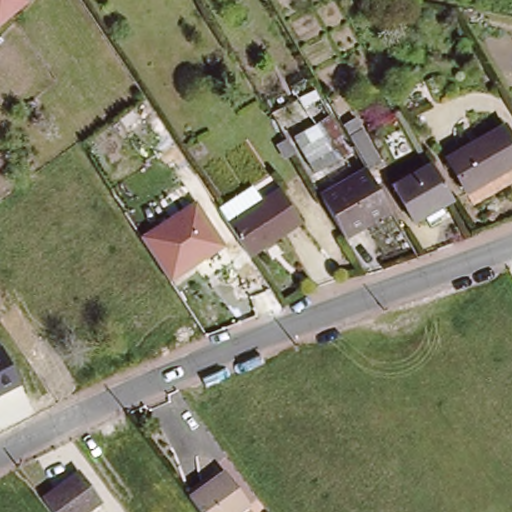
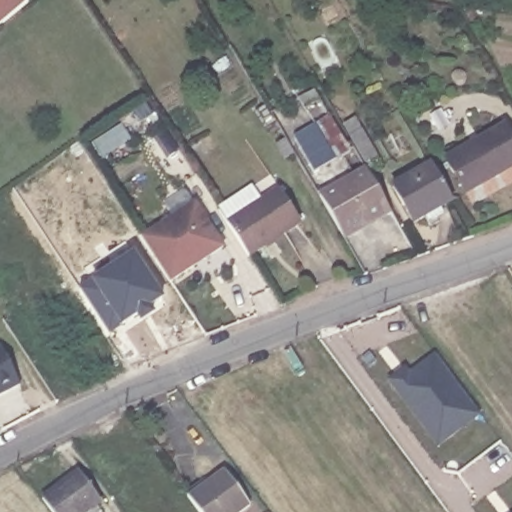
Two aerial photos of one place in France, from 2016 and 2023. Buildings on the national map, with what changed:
unchanged [(0,25),(0,0),(26,0),(28,2),(0,25)]
demolished [(6,109),(0,103),(0,43),(37,85),(6,109)]
unchanged [(354,162),(317,183),(292,138),(329,117),(354,162)]
unchanged [(467,192),(447,158),(505,124),(512,137),(512,166),(467,192)]
unchanged [(453,205),(413,227),(393,190),(432,169),(453,205)]
unchanged [(390,213),(343,241),(318,199),(365,171),(369,177),(390,213)]
unchanged [(302,225),(250,262),(230,231),(220,218),(255,194),(264,207),(281,194),(302,225)]
unchanged [(140,236),(197,200),(225,247),(170,283),(140,236)]
new [(109,334),(80,290),(135,254),(164,299),(150,308),(109,334)]
unchanged [(20,387),(0,397),(0,348),(4,347),(20,387)]
new [(388,379),(405,367),(408,373),(435,353),(480,414),(437,447),(388,379)]
unchanged [(43,495),(80,470),(102,501),(86,512),(56,512),(43,495)]
unchanged [(191,496),(225,471),(252,507),(244,512),(203,512),(191,496)]

